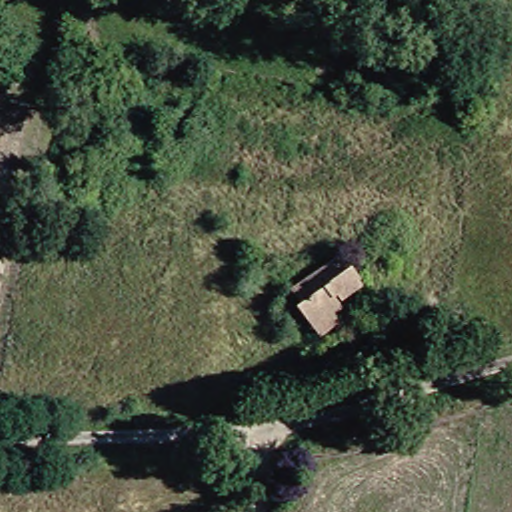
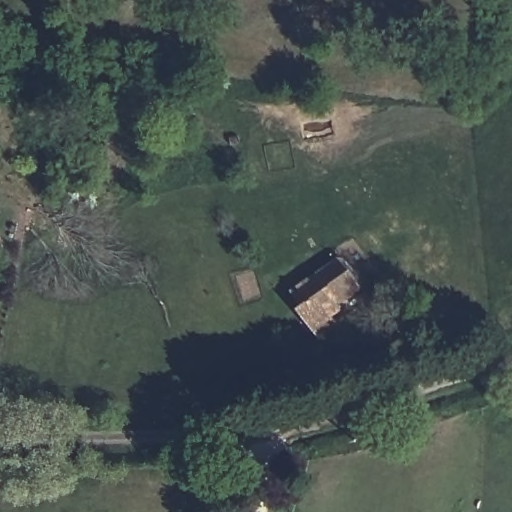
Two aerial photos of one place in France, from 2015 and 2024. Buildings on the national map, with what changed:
unchanged [(290,305),(280,291),(335,253),(346,267),(367,301),(313,338),(290,305)]

